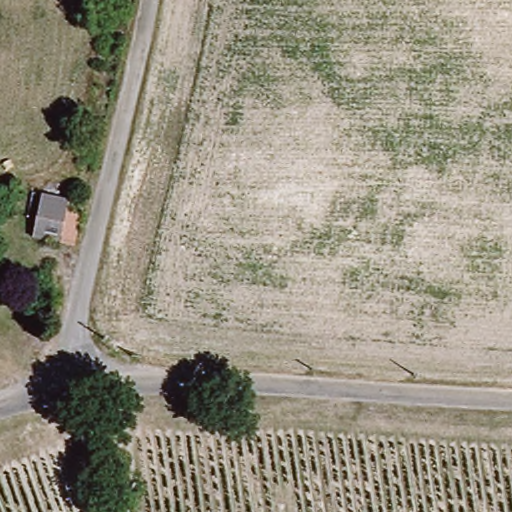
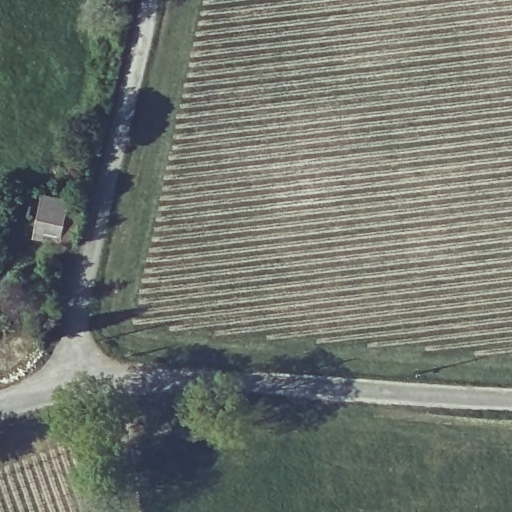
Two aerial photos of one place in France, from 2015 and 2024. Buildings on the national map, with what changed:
unchanged [(28,233),(39,193),(57,197),(76,202),(66,244),(28,233)]

